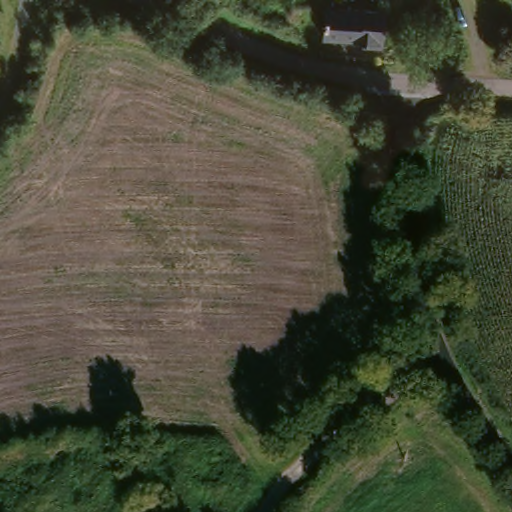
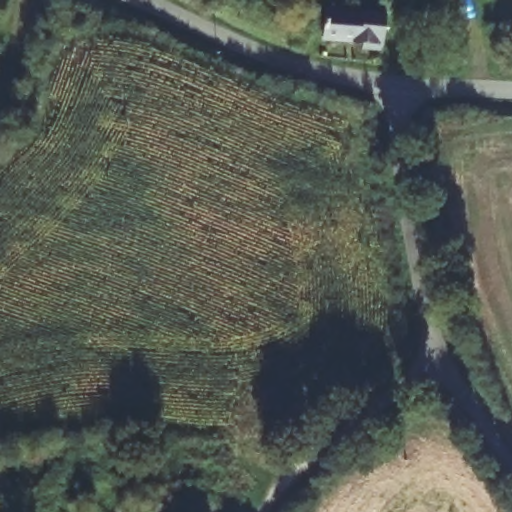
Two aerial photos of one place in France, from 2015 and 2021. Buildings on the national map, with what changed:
unchanged [(363,22),(378,24),(376,46),(321,42),(323,5),(323,3),(343,4),(343,7),(342,16),(364,18),(363,22)]

